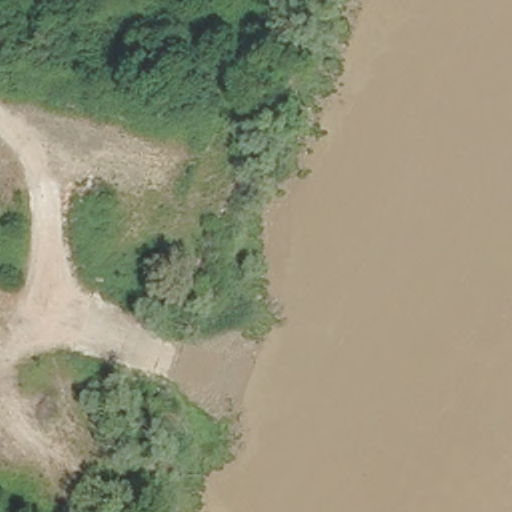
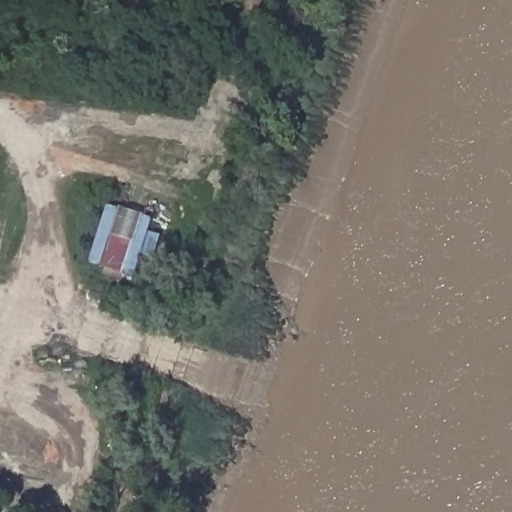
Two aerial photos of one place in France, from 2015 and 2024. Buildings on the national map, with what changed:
new [(151,232),(162,236),(155,259),(144,256),(137,278),(90,262),(110,204),(155,219),(151,232)]

